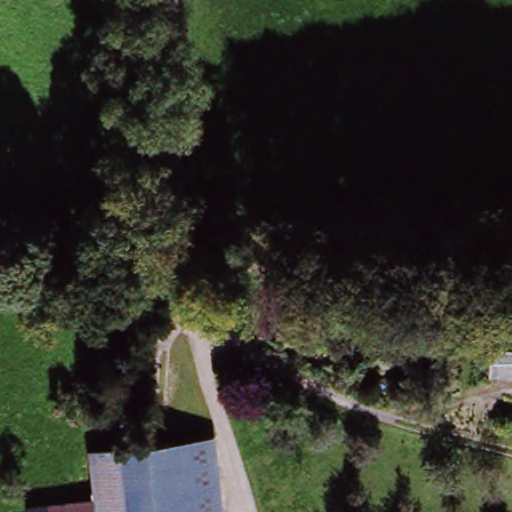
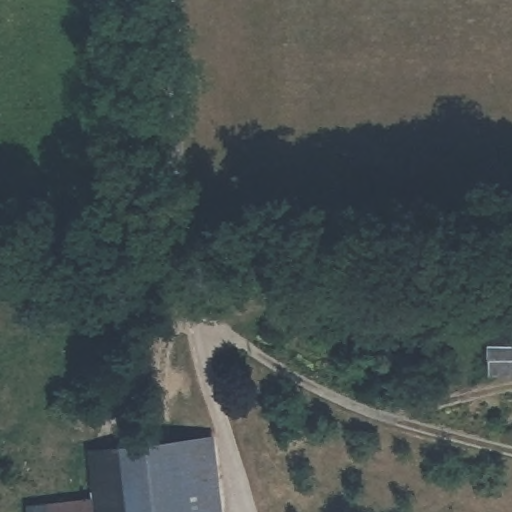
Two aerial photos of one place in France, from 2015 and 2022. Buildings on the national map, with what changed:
unchanged [(492,335),(512,335),(512,377),(494,377),(492,335)]
unchanged [(212,437),(220,512),(129,512),(122,447),(212,437)]
unchanged [(97,498),(92,450),(122,447),(129,512),(32,512),(32,506),(97,498)]

